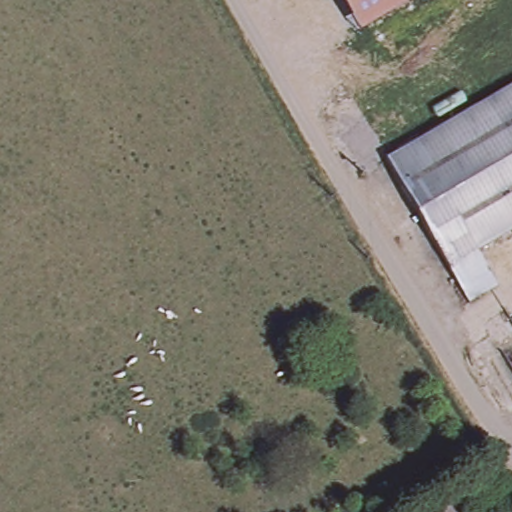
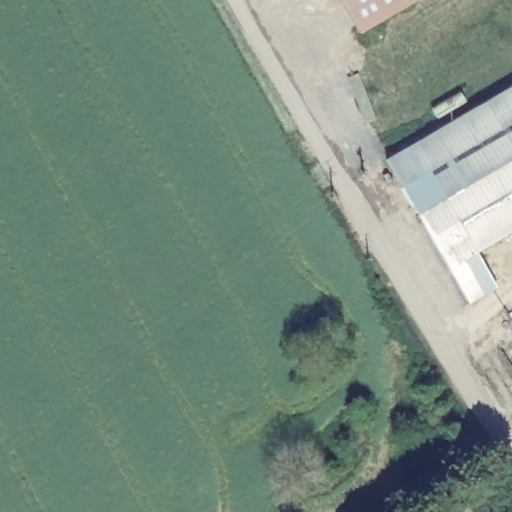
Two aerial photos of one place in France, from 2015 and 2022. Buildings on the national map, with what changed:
unchanged [(339,0),(413,0),(357,32),(339,0)]
unchanged [(512,226),(472,248),(447,262),(387,156),(512,83),(512,226)]
unchanged [(472,248),(495,286),(469,300),(447,262),(472,248)]

